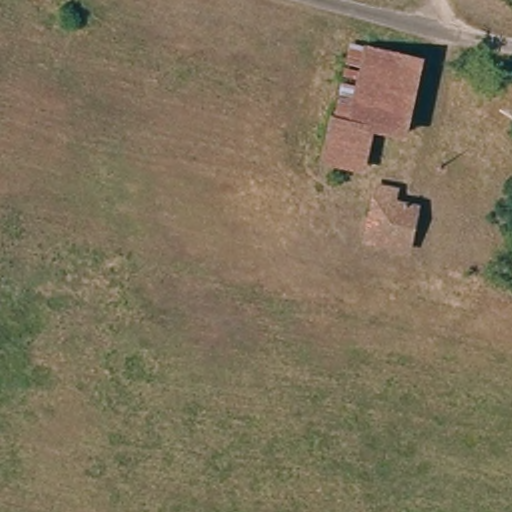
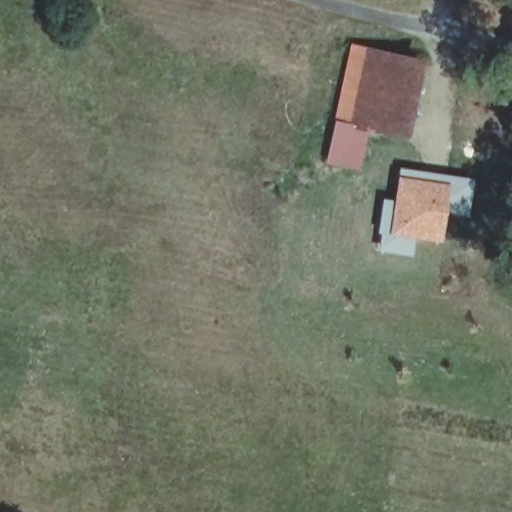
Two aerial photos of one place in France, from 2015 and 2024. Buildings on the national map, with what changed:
unchanged [(374,135),(368,176),(320,165),(328,117),(333,116),(341,53),(361,56),(362,45),(426,58),(409,139),(374,135)]
new [(398,203),(402,170),(422,174),(420,182),(444,185),(444,177),(470,180),(465,210),(443,207),(439,237),(411,234),(409,250),(383,246),(387,228),(381,226),(385,202),(398,203)]
demolished [(362,246),(369,203),(370,183),(400,186),(399,199),(420,203),(410,253),(362,246)]

